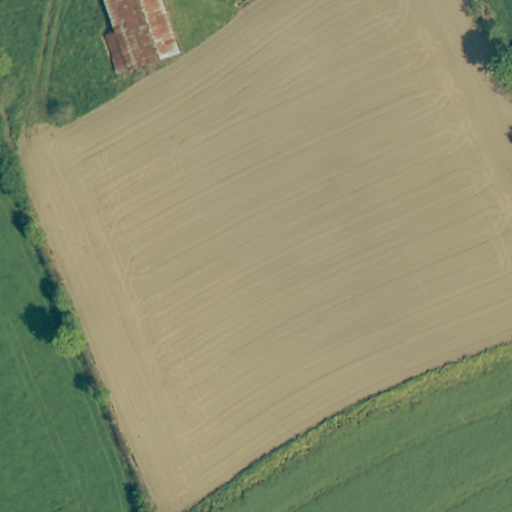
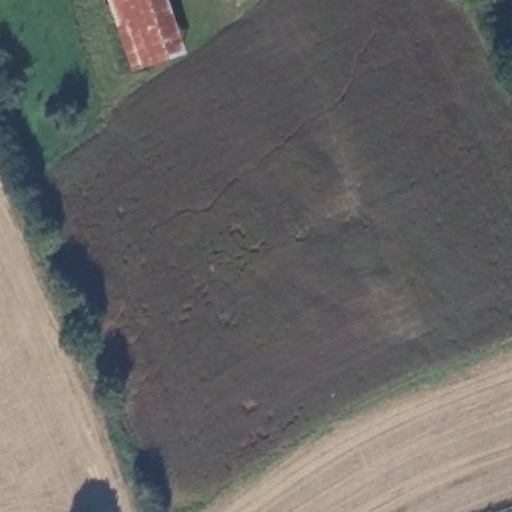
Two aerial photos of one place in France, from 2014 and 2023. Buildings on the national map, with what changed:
unchanged [(108,0),(165,0),(187,54),(137,74),(124,79),(109,39),(122,34),(108,0)]

